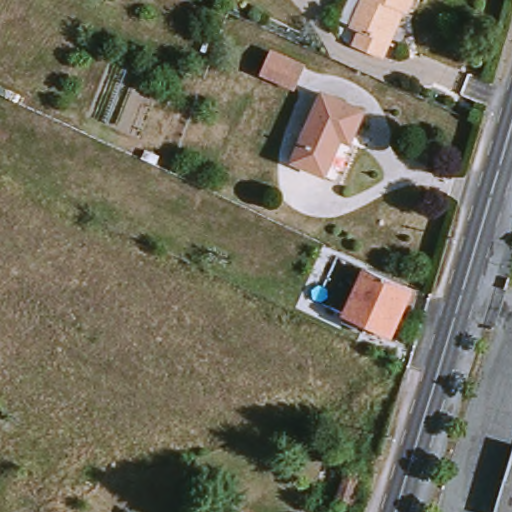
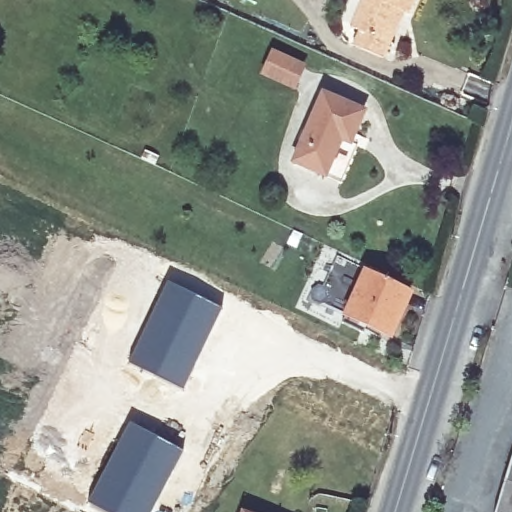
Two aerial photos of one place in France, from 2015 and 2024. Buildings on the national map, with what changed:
unchanged [(358,31),(352,28),(365,0),(368,0),(372,1),(372,0),(415,0),(407,18),(398,13),(383,42),(391,48),(382,62),(352,45),(358,31)]
unchanged [(271,80),(281,59),(311,74),(301,94),(271,80)]
unchanged [(337,143),(319,181),(288,167),(321,98),(363,118),(354,140),(350,150),(337,143)]
new [(169,153),(159,176),(138,169),(150,145),(169,153)]
demolished [(164,171),(154,194),(133,187),(145,163),(164,171)]
unchanged [(365,275),(410,295),(392,339),(369,328),(365,337),(343,327),(365,275)]
new [(166,280),(222,307),(183,389),(129,361),(166,280)]
new [(184,450),(150,512),(109,512),(87,500),(129,421),(184,450)]
unchanged [(497,512),(512,458),(512,512),(497,512)]
unchanged [(361,476),(350,512),(338,512),(313,505),(324,464),(361,476)]

